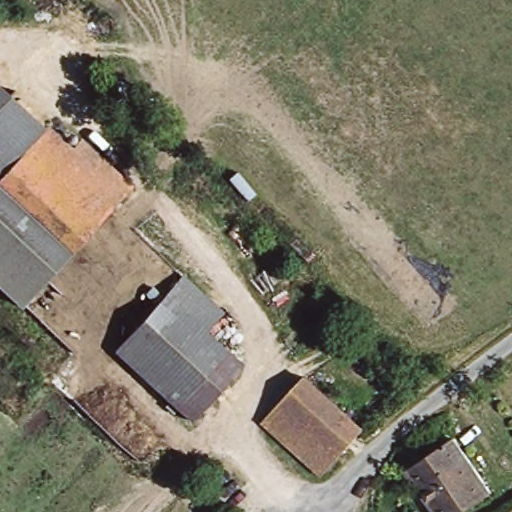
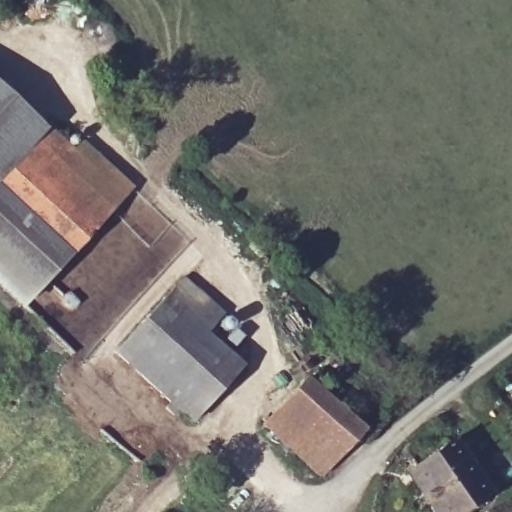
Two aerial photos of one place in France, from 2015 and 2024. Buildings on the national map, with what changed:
unchanged [(0,89),(43,131),(0,176),(0,89)]
unchanged [(0,261),(0,176),(43,131),(52,123),(77,148),(86,139),(136,187),(34,294),(9,270),(0,261)]
unchanged [(0,261),(9,270),(0,293),(0,261)]
unchanged [(0,316),(0,293),(9,270),(34,294),(7,322),(0,316)]
unchanged [(181,279),(224,320),(209,334),(242,366),(187,421),(113,349),(181,279)]
unchanged [(309,378),(361,433),(318,474),(265,421),(309,378)]
unchanged [(490,489),(457,512),(433,512),(405,472),(455,438),(490,489)]

